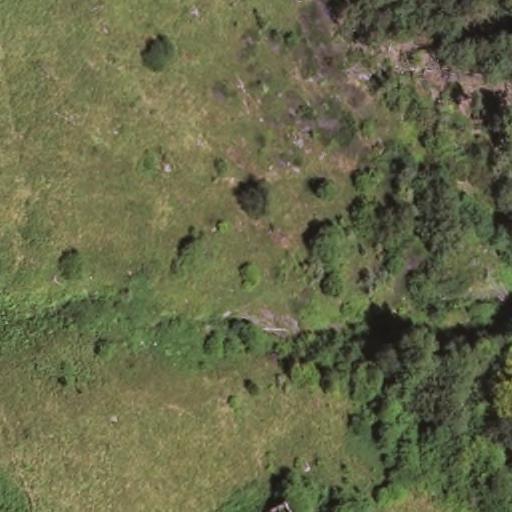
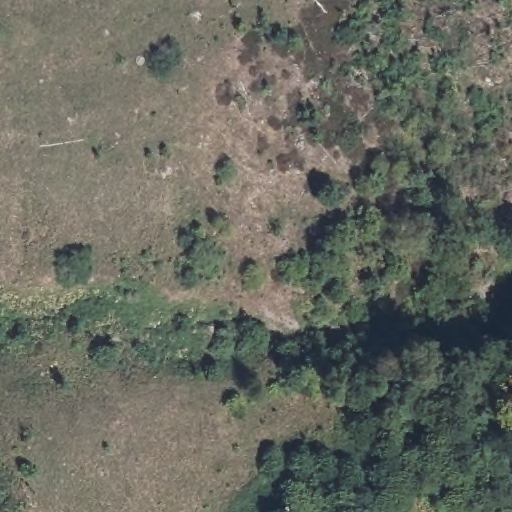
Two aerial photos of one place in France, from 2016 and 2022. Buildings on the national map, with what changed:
unchanged [(287,512),(267,512),(283,505),(287,512)]

